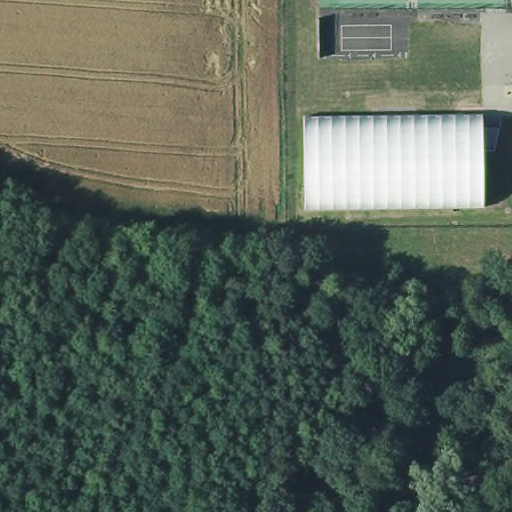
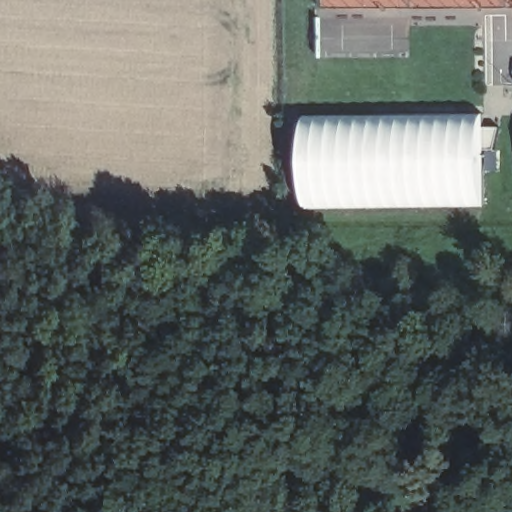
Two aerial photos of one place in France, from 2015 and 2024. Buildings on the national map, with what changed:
unchanged [(483,115),(483,202),(306,203),(305,117),(483,115)]

